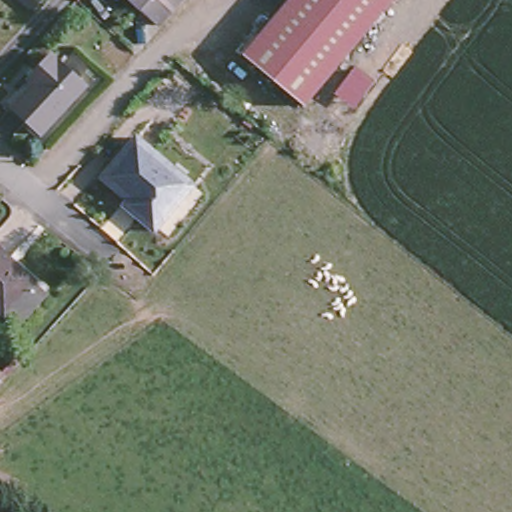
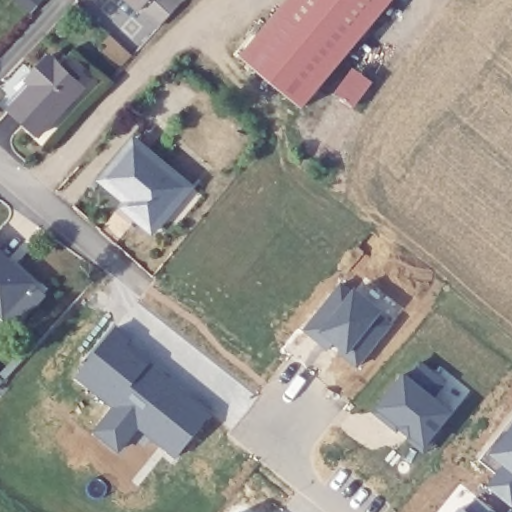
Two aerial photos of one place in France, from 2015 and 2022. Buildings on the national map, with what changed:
unchanged [(138,7),(130,0),(174,0),(154,21),(138,7)]
unchanged [(305,108),(245,57),(292,0),(393,0),(305,108)]
unchanged [(83,85),(36,134),(9,108),(35,81),(28,75),(50,53),(83,85)]
unchanged [(187,175),(153,226),(131,211),(141,199),(126,189),(123,192),(98,175),(126,135),(187,175)]
unchanged [(0,307),(0,253),(26,279),(0,307)]
new [(351,285),(395,323),(359,368),(313,325),(351,285)]
new [(79,362),(83,365),(112,329),(127,341),(122,347),(134,357),(136,360),(136,362),(134,365),(141,370),(146,365),(208,415),(173,458),(148,438),(151,435),(137,424),(115,451),(92,433),(120,397),(111,408),(73,378),(83,366),(78,363),(79,362)]
new [(402,375),(406,378),(418,363),(442,383),(431,397),(451,413),(438,429),(441,432),(427,448),(424,446),(416,447),(406,439),(409,436),(399,428),(396,431),(372,412),(402,375)]
new [(498,454),(512,439),(512,512),(510,512),(490,489),(509,467),(498,454)]
new [(468,512),(472,507),(477,512),(468,512)]
new [(247,512),(249,508),(255,512),(247,512)]

